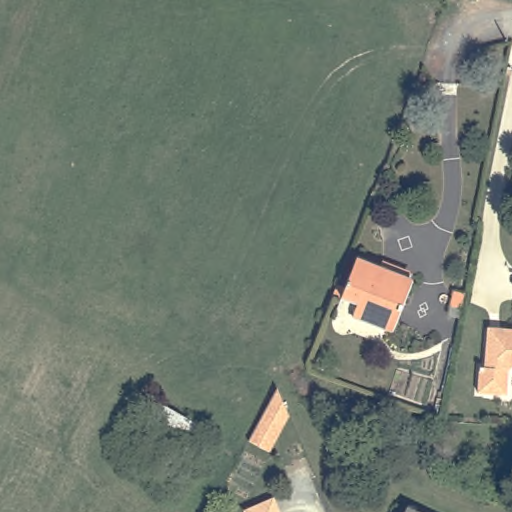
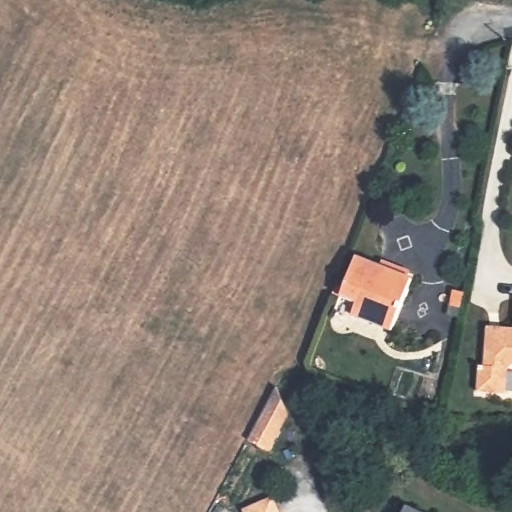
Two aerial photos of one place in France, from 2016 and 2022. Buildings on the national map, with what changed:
unchanged [(358,258),(413,280),(394,330),(338,309),(358,258)]
unchanged [(503,393),(475,391),(478,365),(483,366),(486,332),(493,332),(498,328),(512,329),(512,364),(506,369),(503,393)]
unchanged [(248,439),(254,429),(266,409),(267,406),(278,387),(289,413),(288,414),(280,430),(268,450),(248,439)]
unchanged [(210,426),(188,461),(140,436),(163,402),(210,426)]
unchanged [(277,512),(250,512),(273,502),(277,512)]
unchanged [(417,512),(410,512),(411,509),(417,512)]

